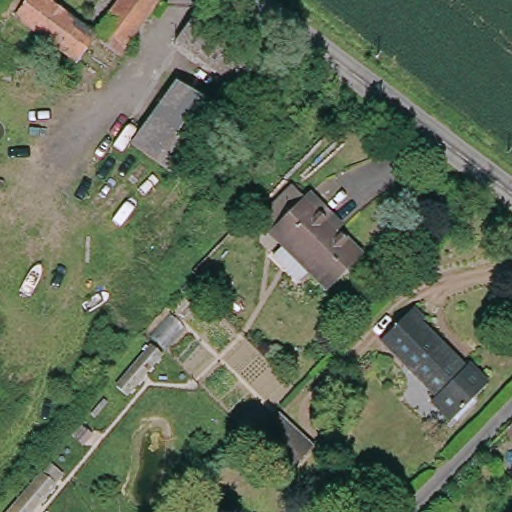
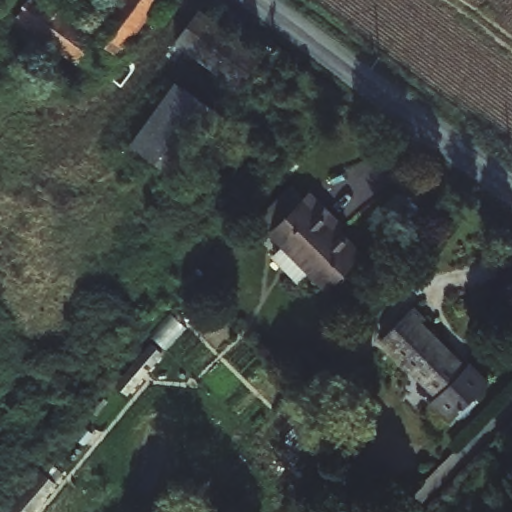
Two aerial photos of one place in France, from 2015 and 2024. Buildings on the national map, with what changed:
unchanged [(13,12),(6,21),(0,16),(0,0),(45,0),(93,36),(76,60),(13,12)]
unchanged [(118,55),(93,36),(122,0),(160,0),(118,55)]
unchanged [(230,97),(218,87),(172,54),(196,20),(243,55),(254,64),(230,97)]
unchanged [(187,125),(158,164),(132,144),(176,84),(204,103),(187,125)]
unchanged [(187,125),(204,103),(225,117),(181,180),(158,164),(187,125)]
unchanged [(332,289),(317,274),(306,285),(279,258),(290,247),(263,220),(298,185),(311,199),(316,196),(326,207),(346,227),(343,231),(366,255),(332,289)]
unchanged [(381,341),(414,307),(425,318),(422,322),(466,366),(469,363),(489,383),(451,421),(431,401),(436,396),(399,360),(381,341)]
unchanged [(151,345),(161,353),(127,394),(117,385),(151,345)]
unchanged [(279,412),(316,446),(293,470),(256,437),(279,412)]
unchanged [(505,430),(512,423),(512,438),(505,430)]
unchanged [(63,474),(31,512),(8,512),(50,463),(63,474)]

